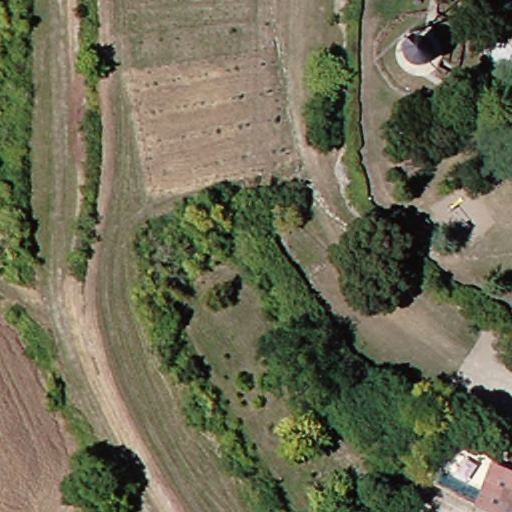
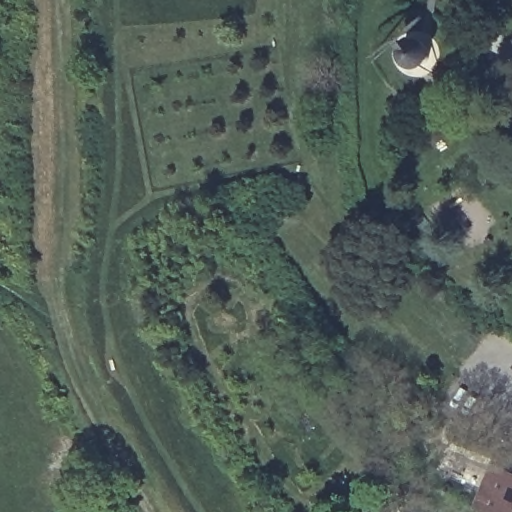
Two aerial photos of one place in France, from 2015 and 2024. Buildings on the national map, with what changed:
unchanged [(415,48),(417,44),(419,41),(422,39),(426,38),(430,37),(433,38),(437,39),(440,42),(442,45),(443,49),(444,53),(443,57),(441,60),(438,63),(435,65),(431,66),(427,66),(423,65),(420,63),(417,60),(415,56),(415,53),(415,51),(415,48)]
unchanged [(497,466),(512,471),(512,512),(496,512),(482,506),(497,466)]

